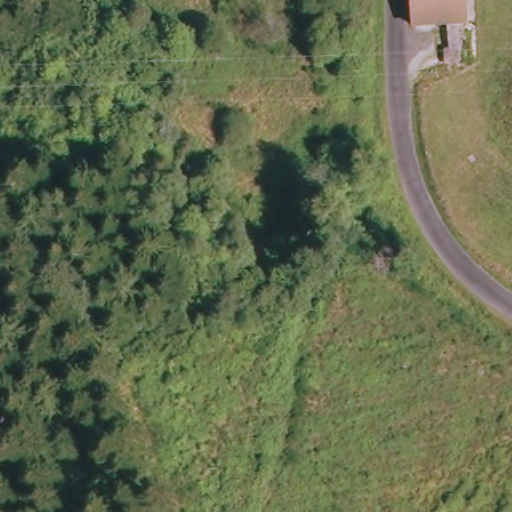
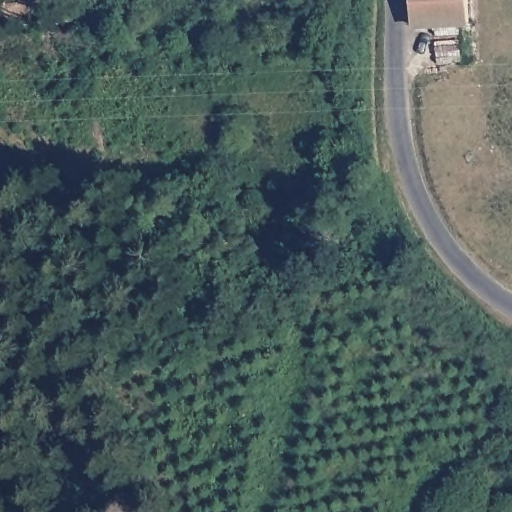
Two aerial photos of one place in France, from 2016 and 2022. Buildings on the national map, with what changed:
unchanged [(417,27),(416,0),(469,0),(471,23),(417,27)]

